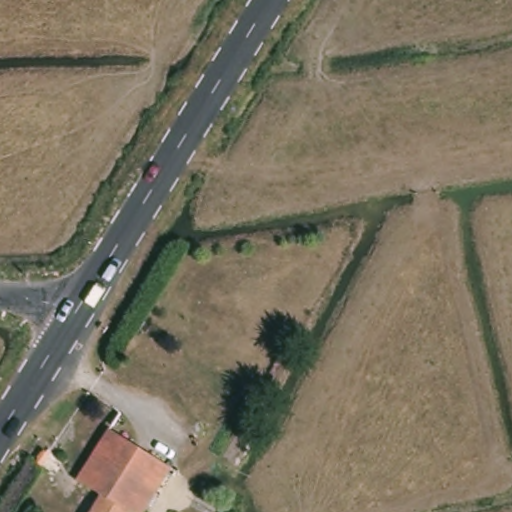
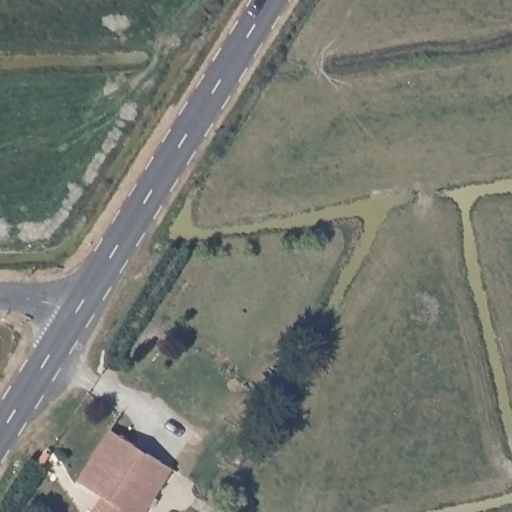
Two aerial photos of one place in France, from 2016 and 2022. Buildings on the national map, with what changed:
unchanged [(108,435),(169,476),(146,512),(96,512),(103,502),(75,483),(108,435)]

